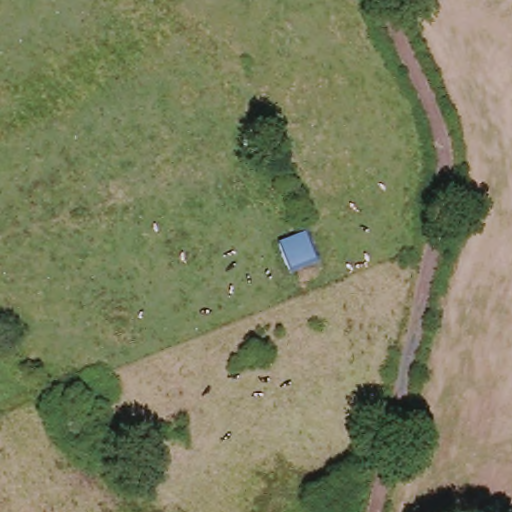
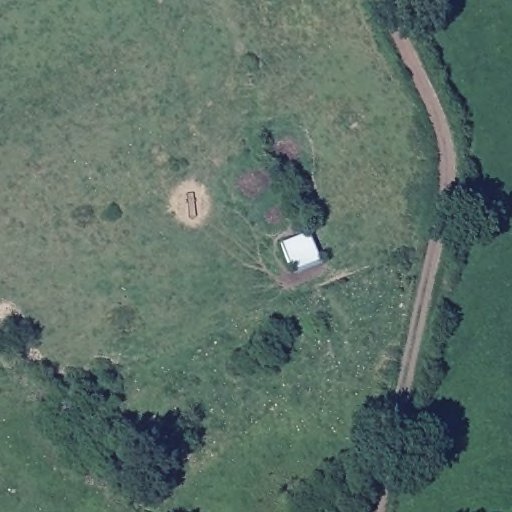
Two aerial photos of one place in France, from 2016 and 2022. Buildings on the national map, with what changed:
unchanged [(307,234),(319,263),(295,274),(283,243),(307,234)]

